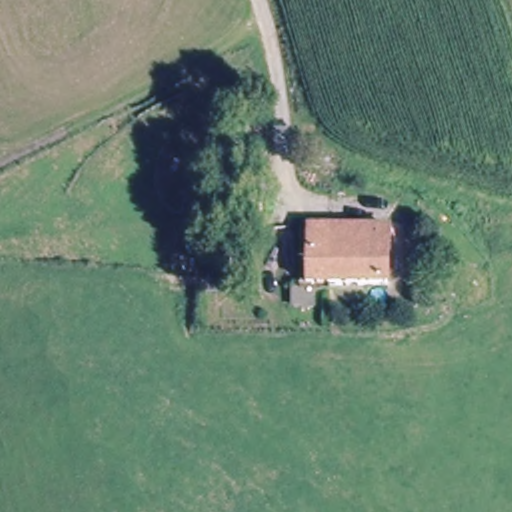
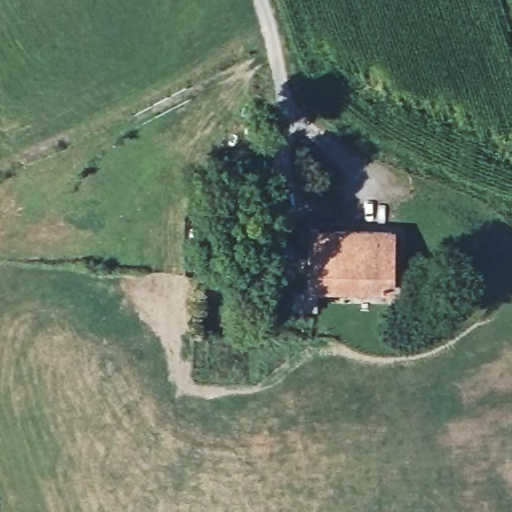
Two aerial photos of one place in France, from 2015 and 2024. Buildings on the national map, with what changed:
unchanged [(314,284),(314,277),(319,233),(393,240),(391,291),(314,284)]

